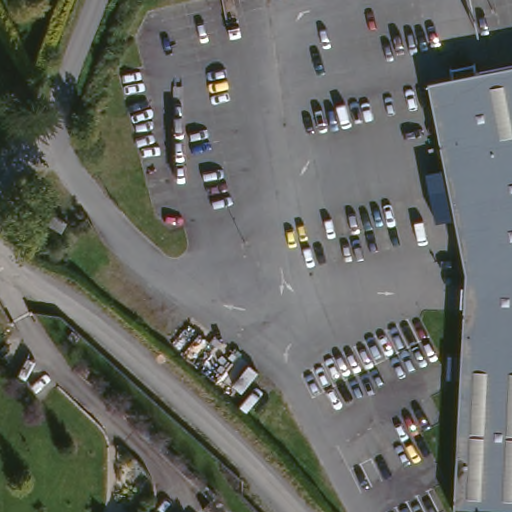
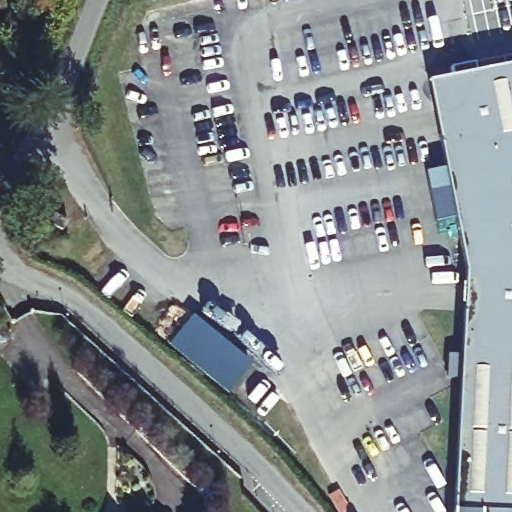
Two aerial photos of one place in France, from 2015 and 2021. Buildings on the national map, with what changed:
unchanged [(512,512),(447,512),(458,276),(440,147),(426,86),(440,71),(465,65),(467,75),(512,66),(512,512)]
unchanged [(68,221),(63,231),(49,225),(54,214),(68,221)]
new [(191,318),(250,365),(227,393),(170,345),(191,318)]

